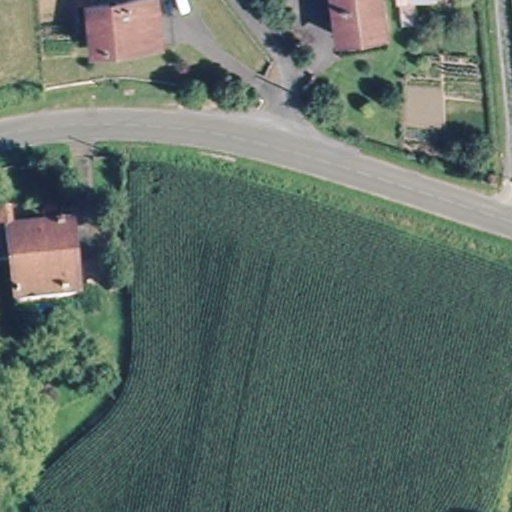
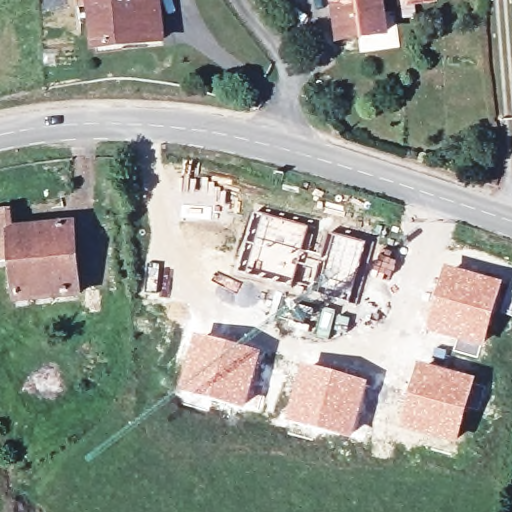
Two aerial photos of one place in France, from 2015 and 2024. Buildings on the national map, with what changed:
unchanged [(165,41),(103,44),(99,4),(160,0),(165,41)]
unchanged [(392,37),(339,42),(334,0),(387,0),(392,37)]
unchanged [(442,3),(416,7),(416,0),(441,0),(442,3)]
unchanged [(9,222),(10,230),(15,263),(0,265),(0,208),(9,207),(9,222)]
new [(303,251),(322,257),(329,233),(368,243),(350,303),(313,293),(319,273),(297,267),(292,288),(239,273),(257,213),(310,227),(303,251)]
unchanged [(69,222),(79,291),(76,291),(20,299),(18,285),(16,274),(15,263),(10,230),(69,222)]
new [(444,266),(506,280),(496,312),(485,349),(482,348),(479,358),(453,351),(456,341),(426,333),(444,266)]
new [(506,280),(512,282),(512,318),(496,312),(506,280)]
new [(195,336),(263,352),(247,410),(180,392),(195,336)]
new [(418,364),(477,378),(458,445),(401,429),(418,364)]
new [(302,365),(369,382),(353,439),(287,421),(302,365)]

